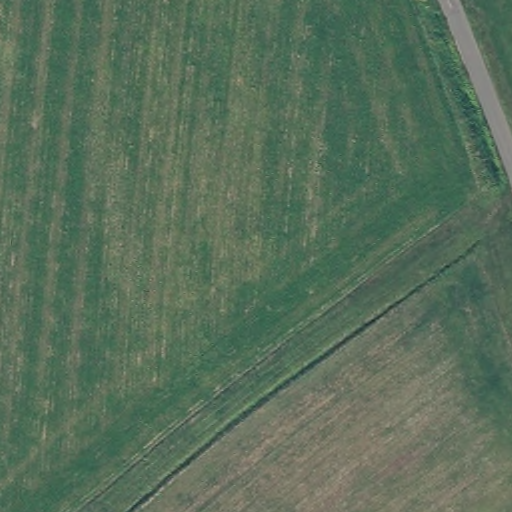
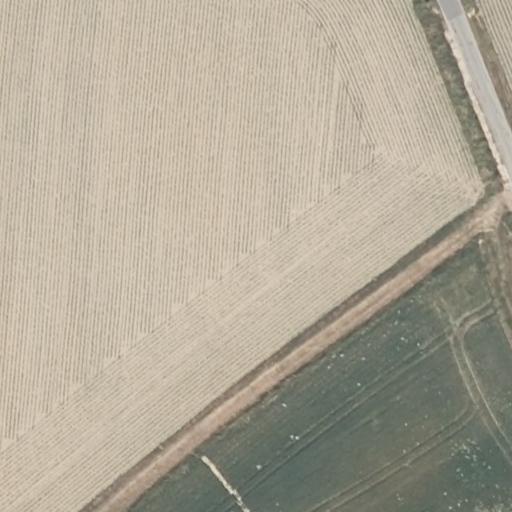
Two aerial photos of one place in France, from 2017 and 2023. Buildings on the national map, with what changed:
[]

